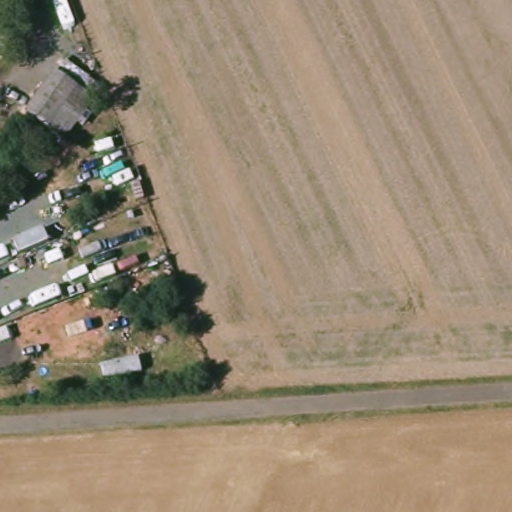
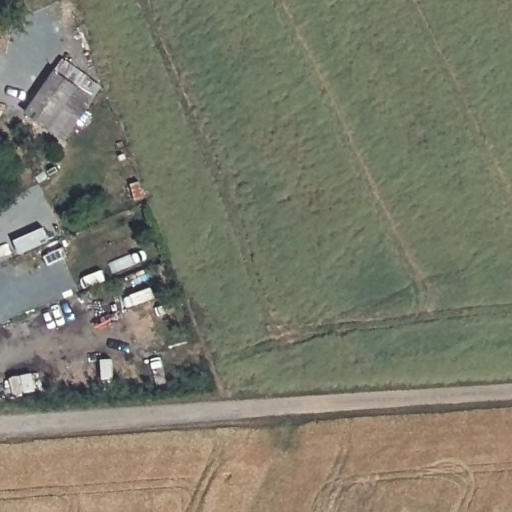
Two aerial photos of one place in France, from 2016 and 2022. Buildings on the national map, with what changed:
unchanged [(63,60),(97,86),(63,130),(29,104),(63,60)]

